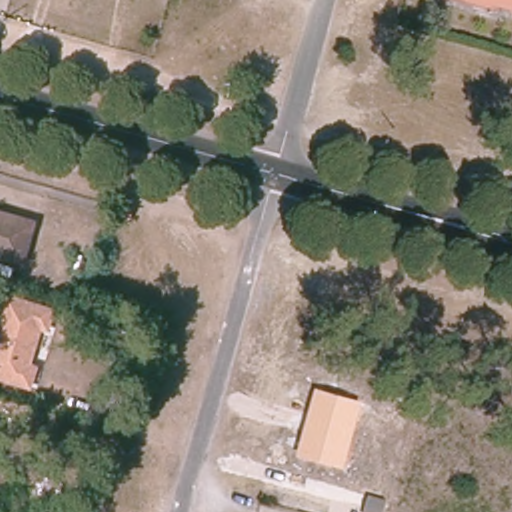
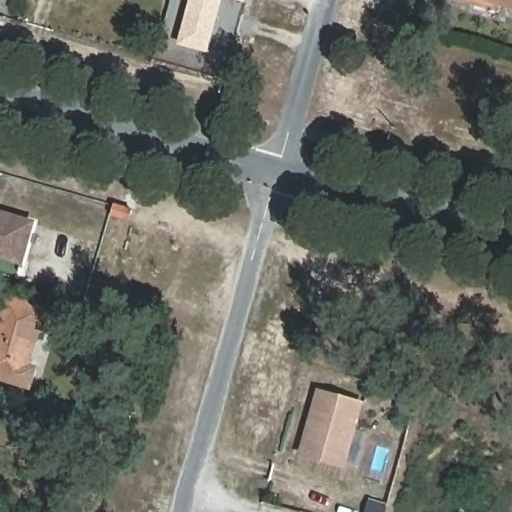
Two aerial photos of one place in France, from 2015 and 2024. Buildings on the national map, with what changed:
new [(193,0),(222,0),(210,42),(206,54),(180,47),(183,34),(193,0)]
unchanged [(499,0),(512,0),(512,4),(499,0)]
unchanged [(139,215),(137,226),(119,221),(121,210),(139,215)]
unchanged [(0,213),(34,223),(22,262),(0,256),(0,213)]
unchanged [(32,331),(23,368),(30,370),(25,389),(0,382),(0,310),(3,300),(47,315),(42,333),(32,331)]
unchanged [(344,469),(298,456),(317,391),(364,404),(344,469)]

